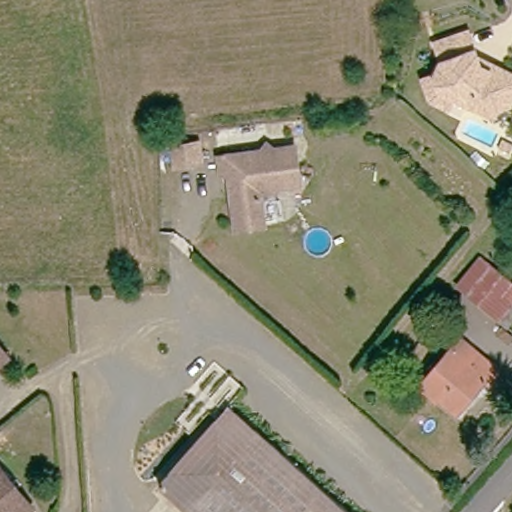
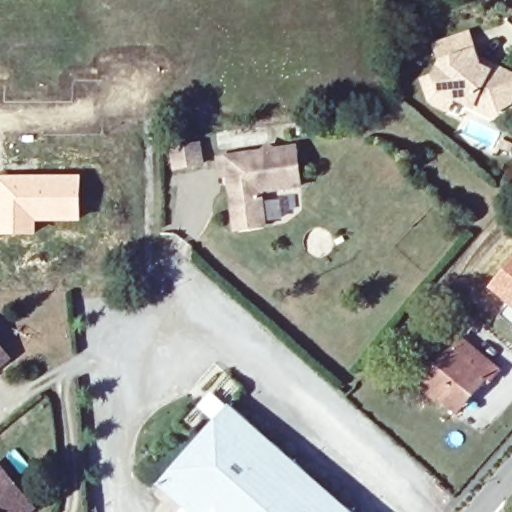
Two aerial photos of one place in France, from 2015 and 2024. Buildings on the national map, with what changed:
unchanged [(458,93),(454,102),(436,95),(427,75),(437,71),(442,58),(435,40),(466,27),(480,60),(492,64),(499,61),(512,66),(512,96),(494,107),(458,93)]
unchanged [(508,130),(512,131),(512,141),(505,139),(508,130)]
unchanged [(262,149),(267,140),(275,149),(295,146),(300,182),(267,186),(260,195),(263,223),(234,227),(227,171),(221,172),(219,154),(262,149)]
unchanged [(169,145),(189,141),(194,141),(197,160),(192,161),(172,164),(169,145)]
new [(82,222),(37,222),(37,236),(0,236),(0,175),(82,175),(82,222)]
unchanged [(512,287),(512,310),(502,322),(463,290),(486,265),(512,287)]
unchanged [(451,409),(454,405),(440,394),(437,399),(422,385),(461,340),(499,372),(488,385),(485,382),(477,392),(457,415),(451,409)]
unchanged [(0,368),(0,348),(10,359),(0,368)]
unchanged [(182,503),(160,480),(181,460),(233,407),(351,512),(192,512),(182,503)]
unchanged [(36,510),(33,512),(0,512),(0,466),(27,500),(36,510)]

